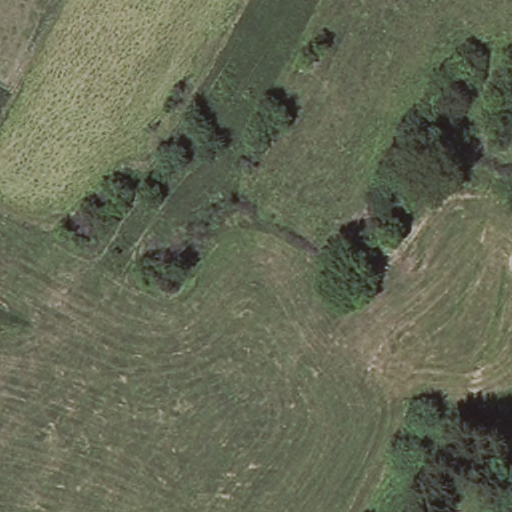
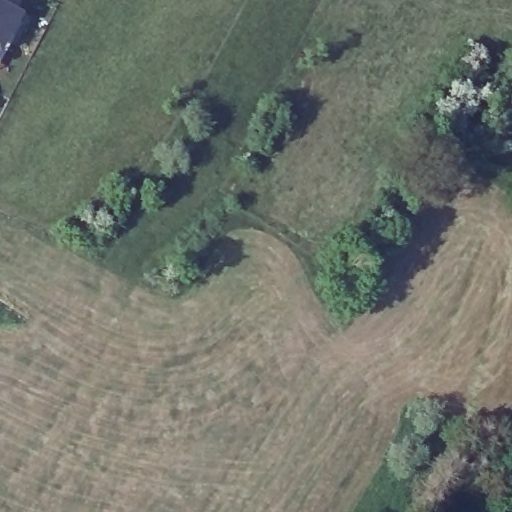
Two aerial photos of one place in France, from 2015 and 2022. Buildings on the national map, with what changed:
new [(0,56),(0,2),(23,16),(0,56)]

